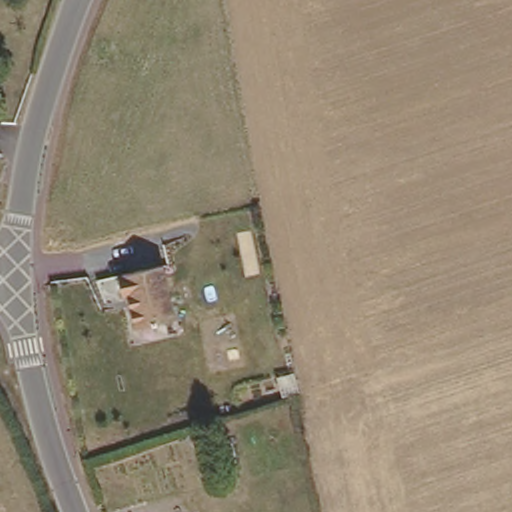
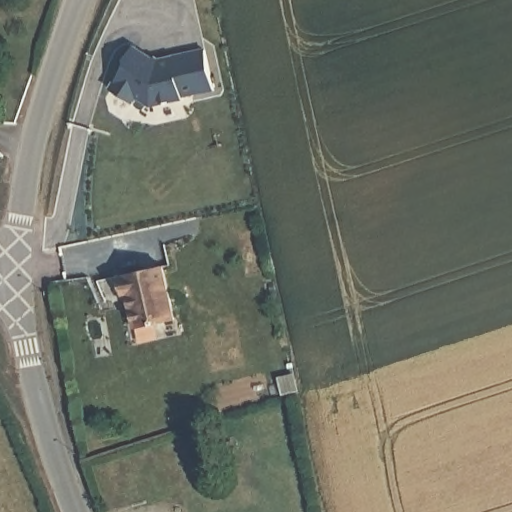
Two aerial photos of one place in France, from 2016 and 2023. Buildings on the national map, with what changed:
new [(158,63),(204,51),(216,94),(180,100),(181,105),(149,109),(136,101),(131,107),(113,95),(117,90),(107,82),(130,49),(158,63)]
unchanged [(165,268),(179,316),(134,330),(121,276),(165,268)]

